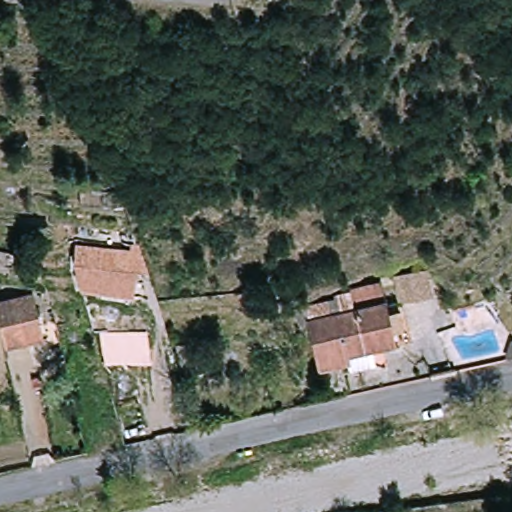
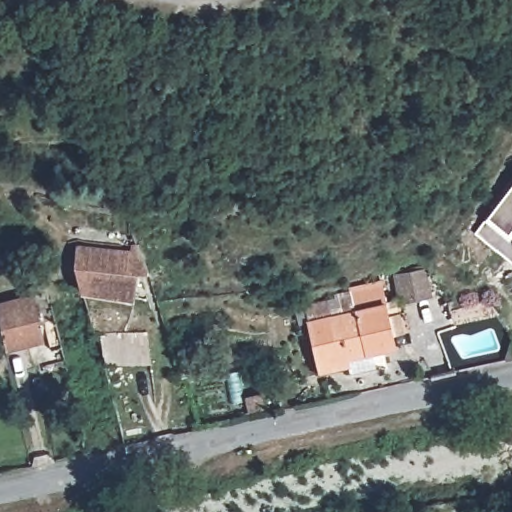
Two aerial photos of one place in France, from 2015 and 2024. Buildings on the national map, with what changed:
new [(512,183),(512,260),(475,231),(512,183)]
unchanged [(78,277),(80,269),(70,268),(73,245),(140,250),(149,278),(143,278),(140,286),(115,283),(113,293),(103,292),(85,290),(86,277),(78,277)]
unchanged [(400,275),(431,269),(435,290),(403,296),(400,275)]
unchanged [(437,332),(428,309),(485,287),(491,318),(437,332)]
unchanged [(335,360),(335,355),(305,359),(298,308),(385,297),(397,295),(400,338),(382,340),(362,342),(363,357),(335,360)]
unchanged [(4,349),(0,332),(0,306),(32,298),(42,341),(4,349)]
unchanged [(101,364),(91,334),(153,330),(160,360),(101,364)]

